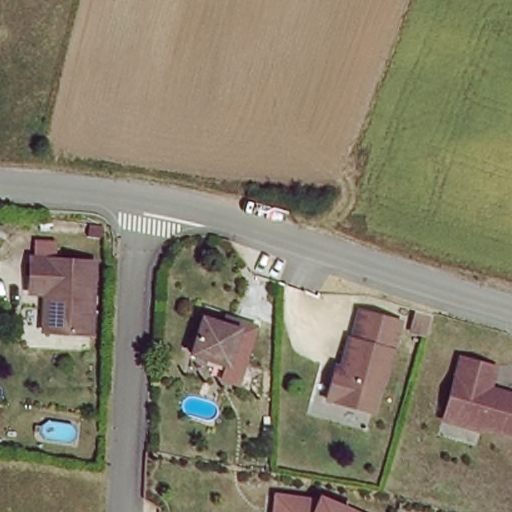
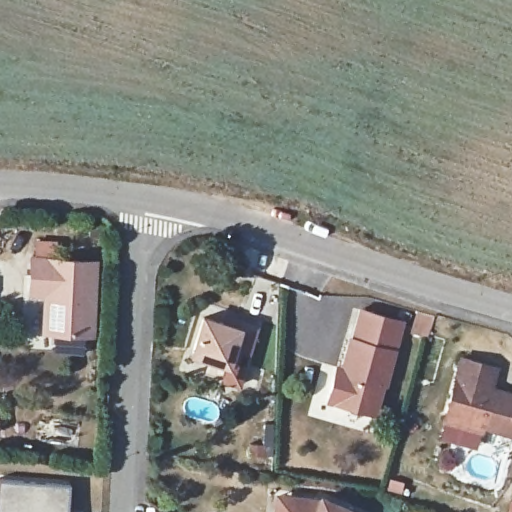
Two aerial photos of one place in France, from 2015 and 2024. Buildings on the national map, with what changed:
unchanged [(47,290),(31,290),(33,255),(97,258),(93,331),(53,329),(45,328),(47,290)]
unchanged [(346,370),(355,340),(358,340),(366,312),(405,324),(387,385),(385,384),(376,414),(331,400),(338,377),(340,368),(346,370)]
unchanged [(225,329),(227,321),(240,326),(257,332),(247,362),(232,357),(227,371),(190,359),(203,322),(225,329)]
unchanged [(500,359),(493,385),(512,390),(512,435),(440,417),(460,353),(500,359)]
new [(67,487),(65,512),(0,512),(0,480),(67,487)]
unchanged [(319,495),(323,488),(382,512),(272,512),(275,490),(319,495)]

